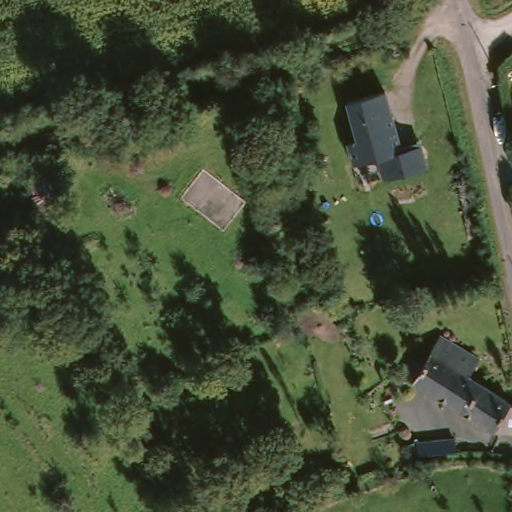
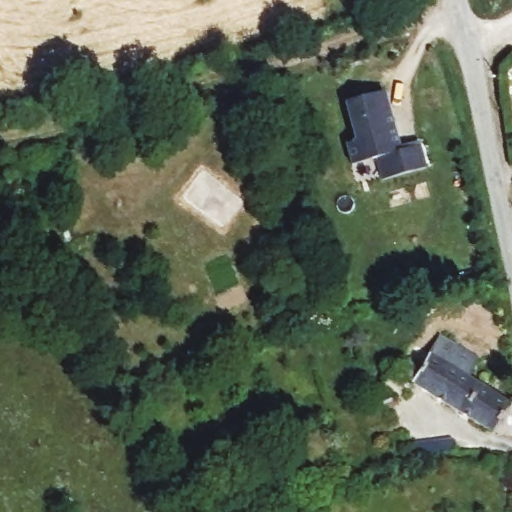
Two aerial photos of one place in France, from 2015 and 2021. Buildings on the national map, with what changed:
unchanged [(428,170),(409,175),(385,181),(379,159),(355,165),(349,144),(359,141),(349,102),(387,92),(402,148),(421,143),(428,170)]
unchanged [(476,353),(469,371),(510,402),(487,432),(410,382),(440,332),(476,353)]
unchanged [(473,446),(471,461),(438,455),(438,441),(448,442),(473,446)]

